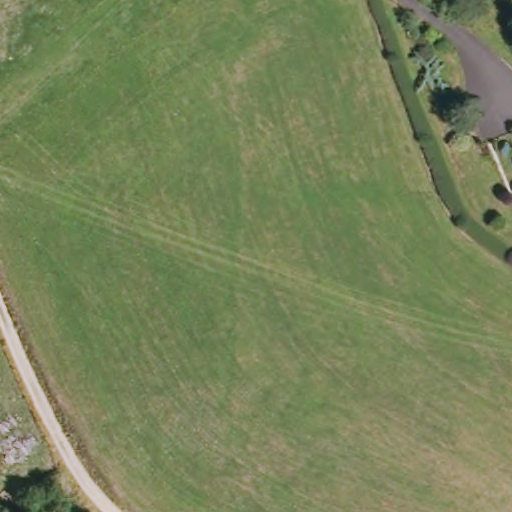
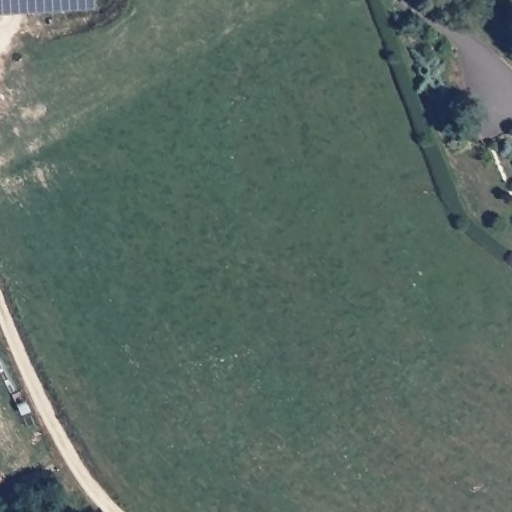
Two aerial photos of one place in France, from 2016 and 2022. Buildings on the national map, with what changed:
new [(95,0),(95,9),(0,14),(0,0),(95,0)]

